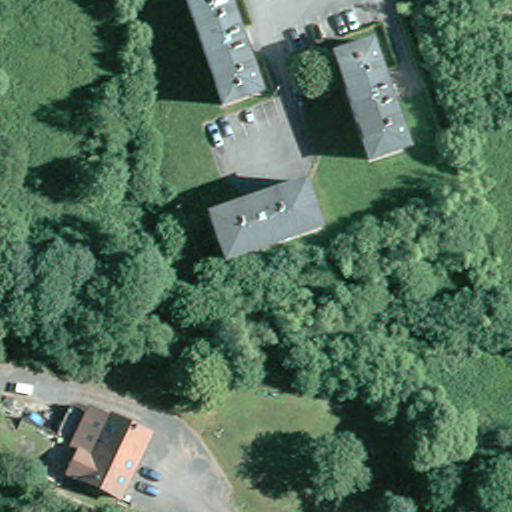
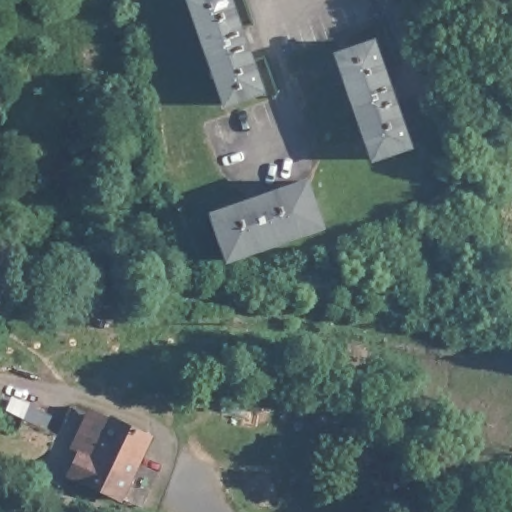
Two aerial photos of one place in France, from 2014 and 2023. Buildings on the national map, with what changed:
unchanged [(187,5),(198,0),(227,0),(262,96),(225,110),(187,5)]
unchanged [(378,156),(342,55),(378,41),(414,144),(378,156)]
unchanged [(323,230),(228,265),(212,219),(307,185),(323,230)]
unchanged [(63,437),(81,404),(115,423),(118,417),(157,436),(130,492),(127,497),(76,473),(74,472),(87,450),(63,437)]

